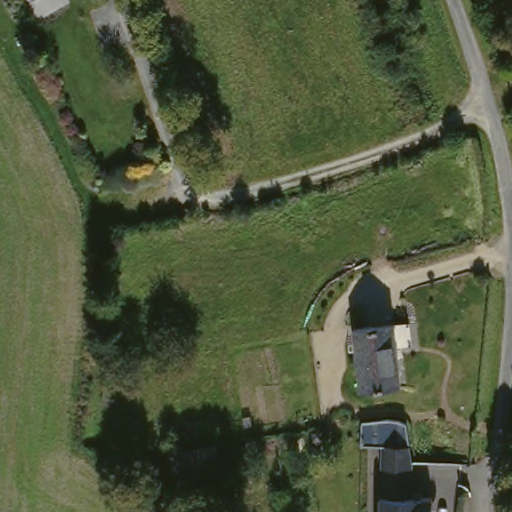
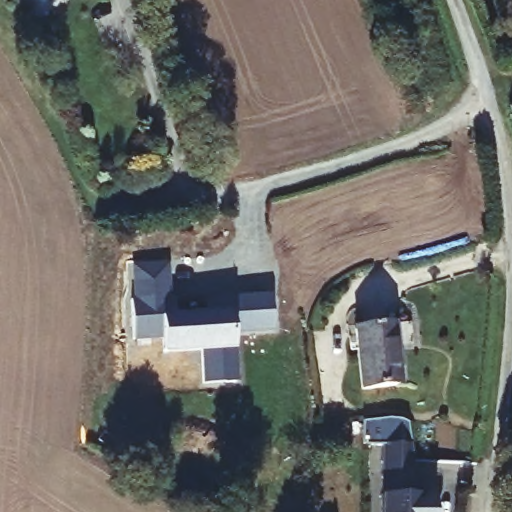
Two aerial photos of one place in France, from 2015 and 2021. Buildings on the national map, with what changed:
new [(165,264),(167,297),(135,299),(133,266),(165,264)]
new [(167,297),(172,297),(173,316),(208,314),(207,300),(220,299),(233,299),(271,296),(273,329),(232,331),(233,356),(209,357),(209,342),(188,343),(188,350),(163,351),(162,337),(132,338),(130,299),(135,299),(167,297)]
unchanged [(393,385),(360,389),(354,329),(391,325),(393,346),(389,346),(393,385)]
new [(188,343),(209,342),(209,357),(233,356),(235,381),(201,384),(200,349),(188,350),(188,343)]
unchanged [(354,443),(354,424),(381,421),(393,420),(396,424),(400,430),(407,458),(408,458),(408,493),(428,493),(428,512),(376,512),(377,443),(354,443)]
unchanged [(201,476),(174,479),(170,452),(198,448),(201,476)]

